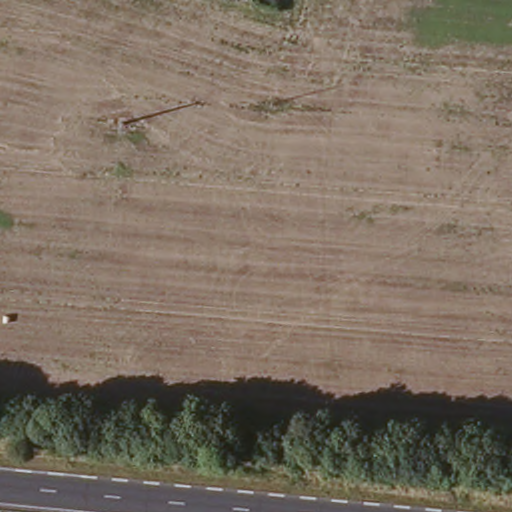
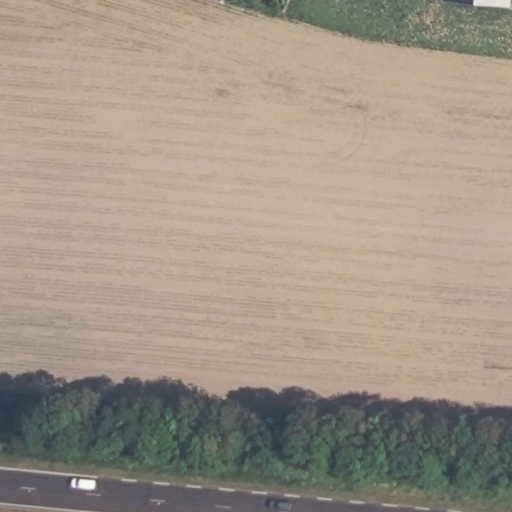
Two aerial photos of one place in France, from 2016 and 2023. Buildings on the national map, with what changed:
new [(512,5),(445,0),(512,0),(512,5)]

